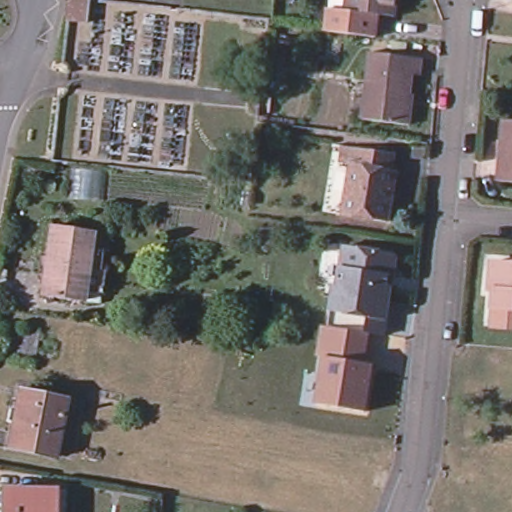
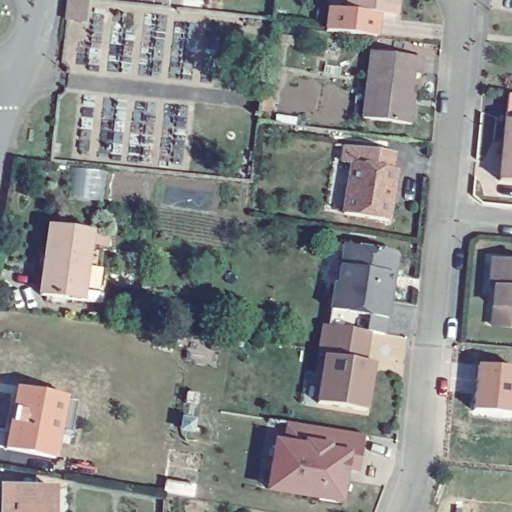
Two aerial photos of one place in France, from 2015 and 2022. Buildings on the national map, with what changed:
unchanged [(87,27),(68,25),(72,0),(91,2),(87,27)]
unchanged [(387,19),(353,15),(355,0),(406,0),(403,21),(387,19)]
unchanged [(383,42),(334,35),(337,12),(353,15),(387,19),(383,42)]
unchanged [(358,86),(370,87),(373,57),(426,63),(424,81),(415,80),(410,129),(365,123),(353,122),(358,86)]
unchanged [(507,127),(512,127),(512,189),(500,187),(507,127)]
unchanged [(397,159),(395,175),(400,176),(392,225),(348,219),(355,169),(346,167),(348,152),(397,159)]
unchanged [(107,277),(105,300),(86,297),(85,305),(43,299),(53,230),(95,236),(112,238),(110,257),(106,257),(103,276),(107,277)]
unchanged [(400,258),(405,262),(402,276),(398,280),(396,291),(400,291),(395,325),(371,321),(340,316),(345,290),(348,291),(355,251),(400,258)]
unchanged [(500,316),(499,316),(500,297),(495,297),(497,270),(512,271),(512,334),(499,333),(500,316)]
unchanged [(317,405),(323,358),(318,355),(323,328),(328,328),(330,314),(340,316),(371,321),(367,363),(373,363),(367,415),(317,405)]
unchanged [(42,332),(38,361),(7,357),(10,329),(42,332)]
unchanged [(239,347),(242,332),(255,335),(253,348),(239,347)]
unchanged [(69,402),(58,463),(12,456),(22,395),(69,402)]
new [(348,482),(344,506),(323,502),(324,497),(303,493),(302,497),(272,492),(276,465),(279,447),(288,448),(285,467),(292,427),(365,438),(359,473),(343,471),(350,472),(348,482)]
unchanged [(53,495),(53,512),(4,512),(5,494),(53,495)]

